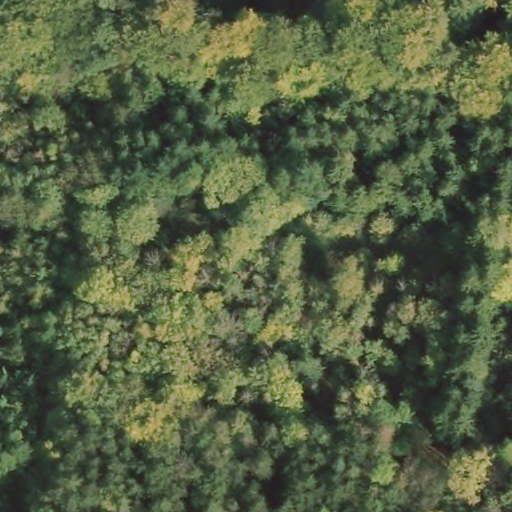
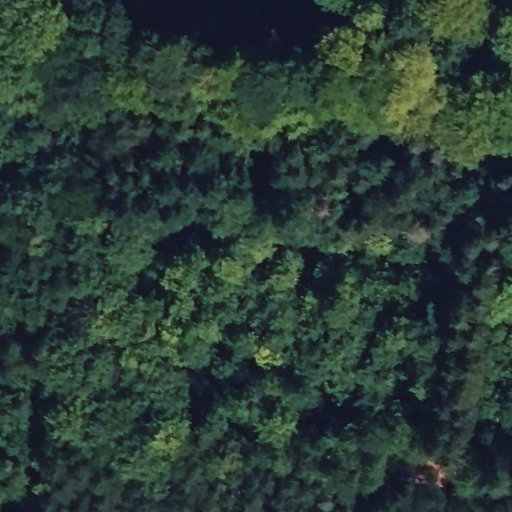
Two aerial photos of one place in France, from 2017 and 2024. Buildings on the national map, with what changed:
unchanged [(410,457),(423,457),(425,463),(451,458),(453,485),(413,490),(410,465),(410,457)]

